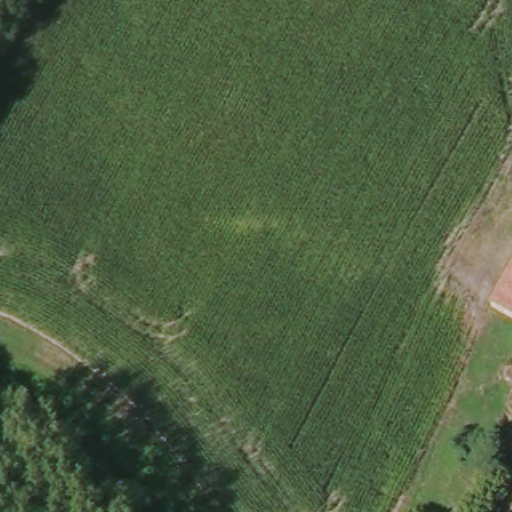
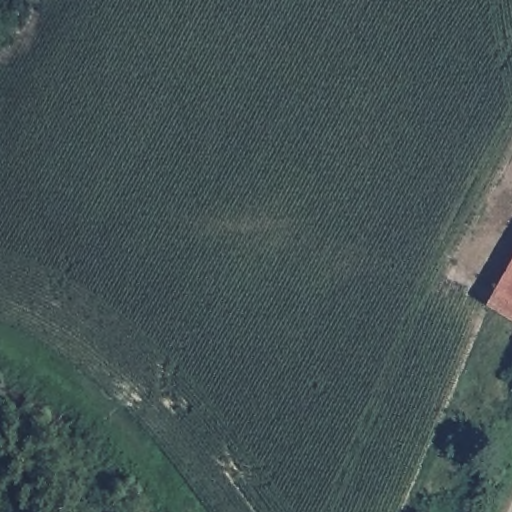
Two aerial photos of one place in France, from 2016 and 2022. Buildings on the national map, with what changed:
unchanged [(512,276),(512,318),(494,306),(512,276)]

